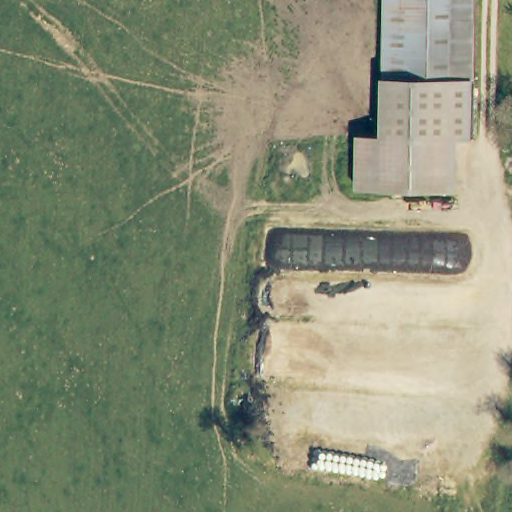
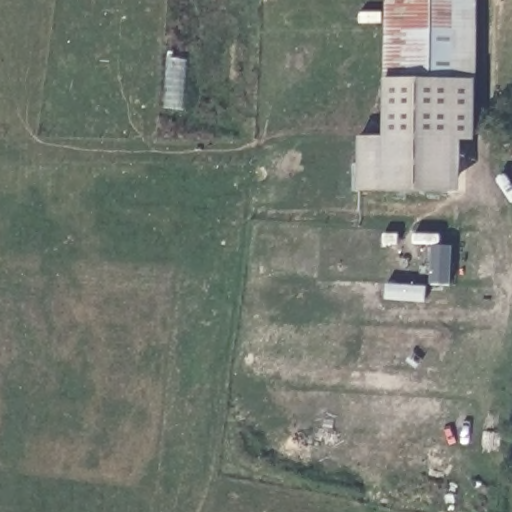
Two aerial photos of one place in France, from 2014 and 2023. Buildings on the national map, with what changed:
unchanged [(473,77),(451,77),(383,75),(385,0),(474,0),(473,77)]
unchanged [(383,75),(451,77),(473,77),(472,137),(449,137),(448,189),(351,192),(351,135),(383,135),(383,75)]

